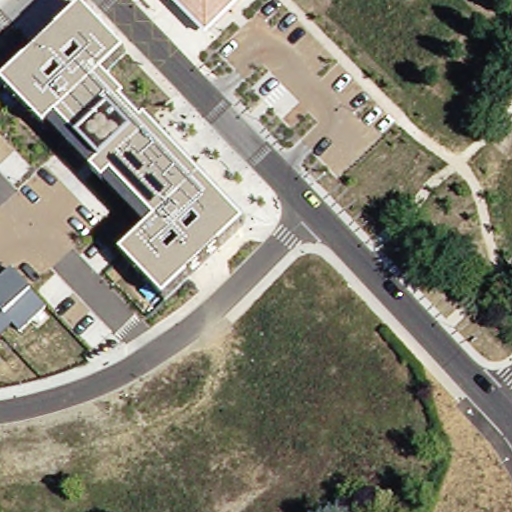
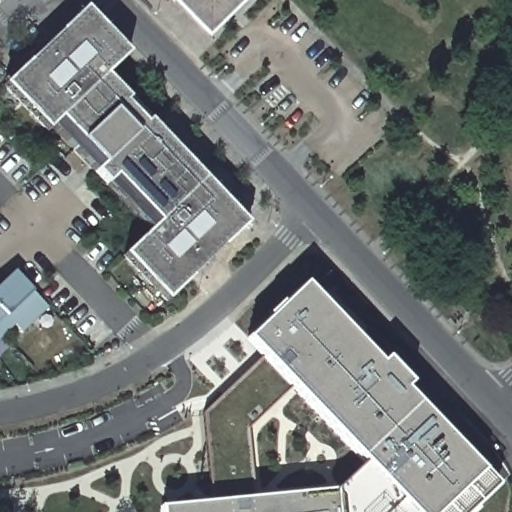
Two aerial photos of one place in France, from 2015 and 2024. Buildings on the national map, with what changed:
unchanged [(168,6),(162,0),(246,0),(252,6),(216,42),(173,0),(170,3),(168,6)]
unchanged [(126,53),(105,76),(126,97),(122,102),(143,123),(146,120),(245,226),(166,301),(121,255),(156,221),(114,178),(106,184),(94,172),(102,164),(58,120),(47,130),(3,85),(83,10),(126,53)]
unchanged [(14,272),(47,308),(21,332),(13,326),(0,339),(0,285),(14,272)]
new [(395,360),(400,356),(424,380),(418,386),(511,483),(481,512),(168,512),(167,505),(343,489),(373,458),(259,338),(317,281),(395,360)]

